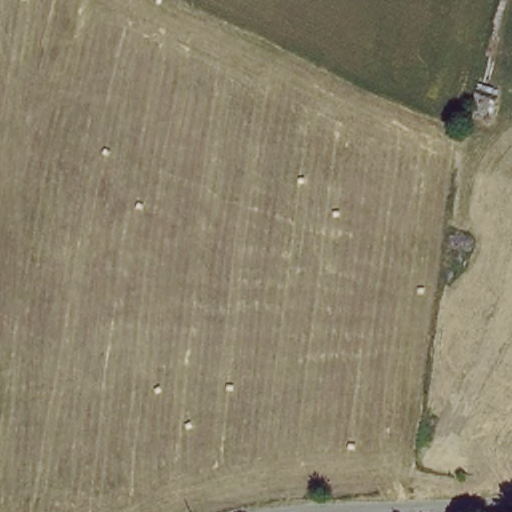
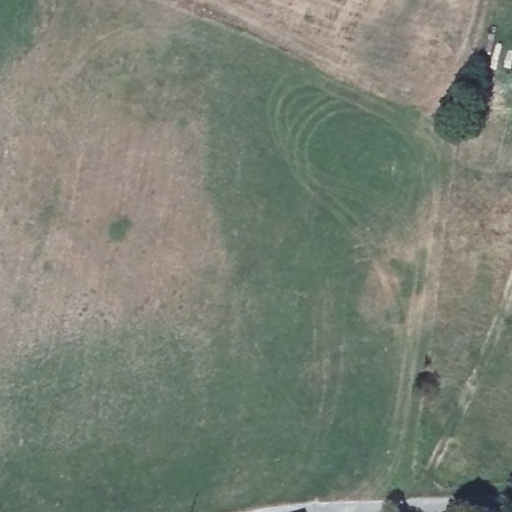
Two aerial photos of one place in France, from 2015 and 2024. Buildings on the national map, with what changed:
[]

